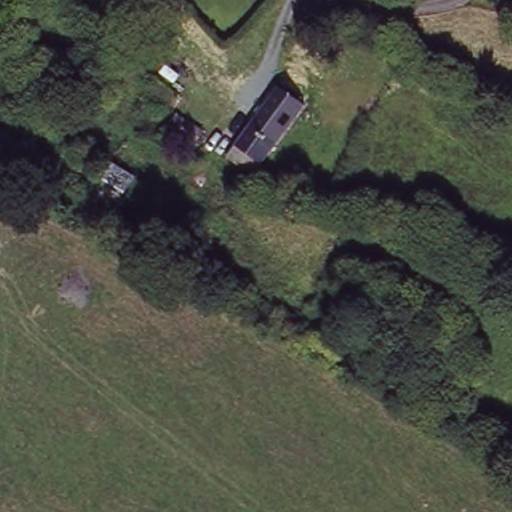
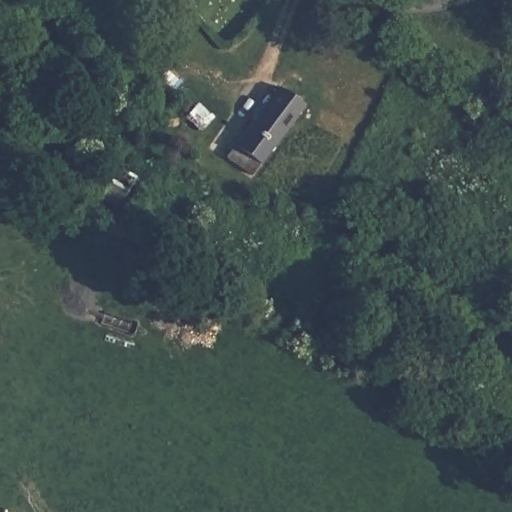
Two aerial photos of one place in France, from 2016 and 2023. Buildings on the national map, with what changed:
unchanged [(249,180),(223,160),(250,124),(275,90),(303,109),(262,163),(249,180)]
unchanged [(116,205),(90,189),(107,164),(133,179),(116,205)]

